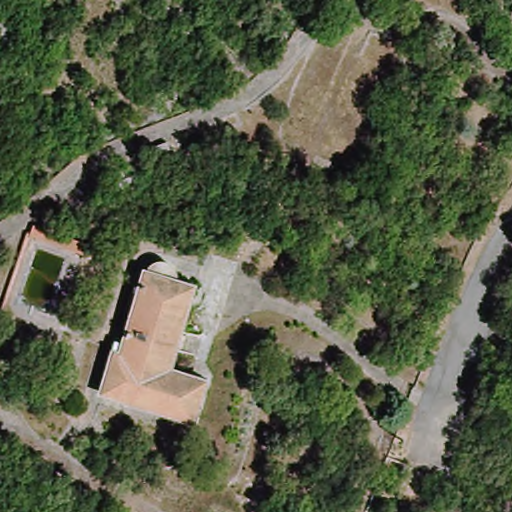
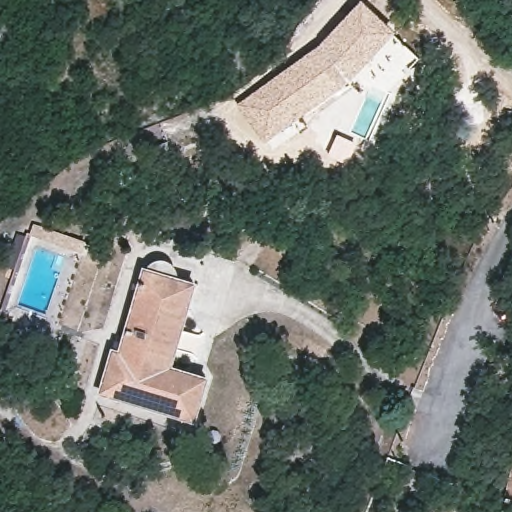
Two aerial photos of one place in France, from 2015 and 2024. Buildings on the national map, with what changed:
new [(317,45),(361,0),(362,0),(395,31),(348,83),(263,144),(236,105),(317,45)]
unchanged [(90,143),(96,161),(52,179),(44,158),(90,143)]
unchanged [(159,150),(169,168),(147,179),(137,161),(159,150)]
demolished [(75,183),(81,200),(37,218),(29,198),(75,183)]
demolished [(144,189),(154,208),(132,219),(122,200),(144,189)]
unchanged [(18,236),(27,221),(92,248),(87,262),(18,236)]
demolished [(3,275),(12,260),(77,287),(72,301),(3,275)]
unchanged [(92,403),(107,359),(117,361),(139,282),(155,281),(160,263),(181,269),(175,284),(189,294),(166,377),(206,394),(190,430),(92,403)]

